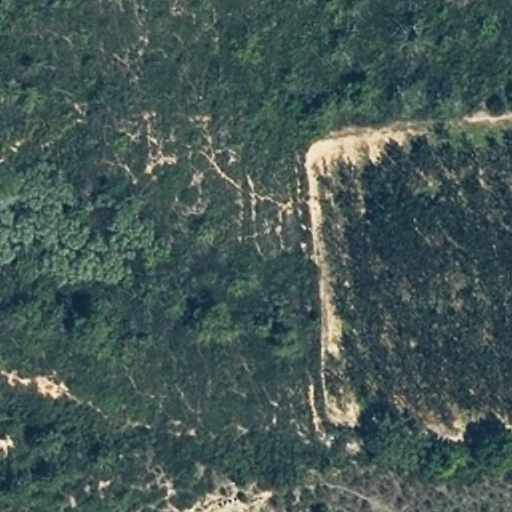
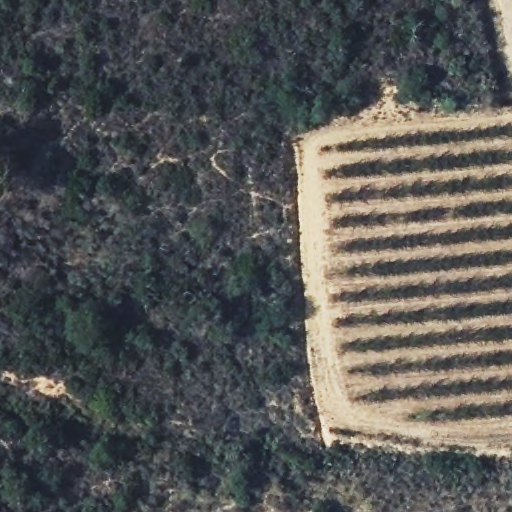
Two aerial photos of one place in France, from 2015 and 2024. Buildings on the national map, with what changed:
[]

